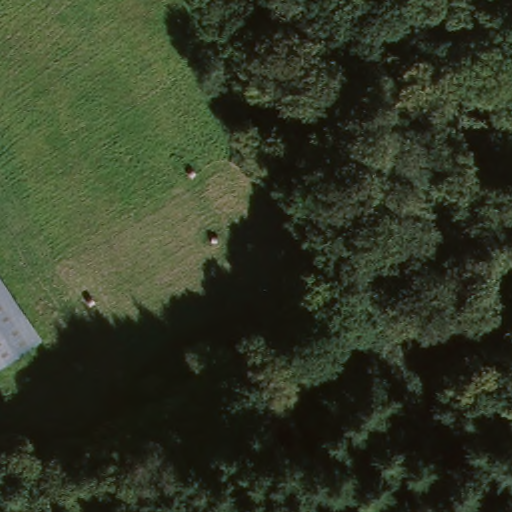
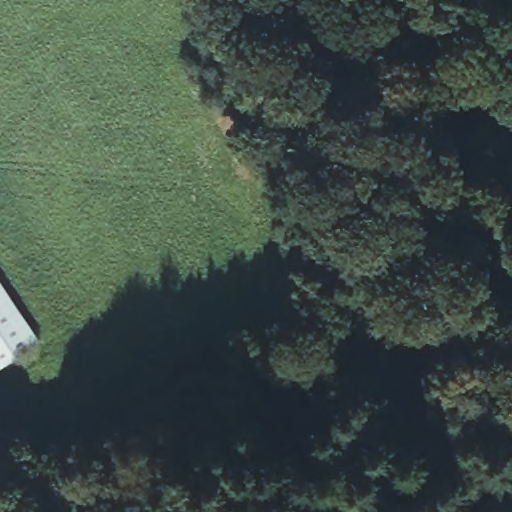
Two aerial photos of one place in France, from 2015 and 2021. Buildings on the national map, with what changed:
unchanged [(0,362),(0,289),(34,337),(0,362)]

